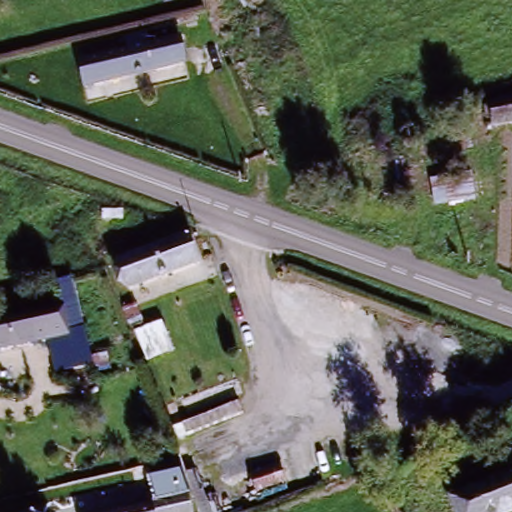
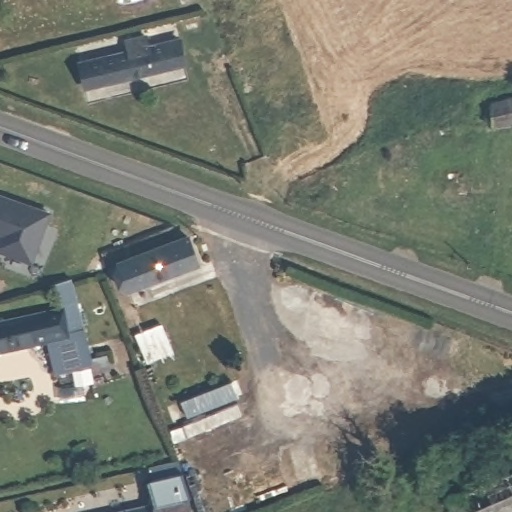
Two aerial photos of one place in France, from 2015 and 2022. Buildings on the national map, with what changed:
unchanged [(173,43),(180,70),(88,91),(82,64),(173,43)]
unchanged [(489,121),(490,94),(512,93),(512,120),(506,120),(489,121)]
unchanged [(380,168),(395,167),(396,154),(415,150),(417,192),(383,197),(380,168)]
unchanged [(495,198),(431,206),(427,179),(490,168),(495,198)]
new [(27,257),(2,248),(5,235),(0,234),(0,193),(45,209),(27,257)]
unchanged [(192,244),(200,267),(139,289),(132,266),(192,244)]
unchanged [(142,364),(120,313),(137,303),(145,330),(166,323),(173,352),(142,364)]
unchanged [(67,338),(0,354),(0,319),(60,307),(67,338)]
unchanged [(280,464),(285,482),(238,492),(235,474),(280,464)]
unchanged [(182,474),(192,512),(121,512),(152,506),(147,483),(182,474)]
unchanged [(512,475),(512,512),(456,512),(451,499),(512,475)]

